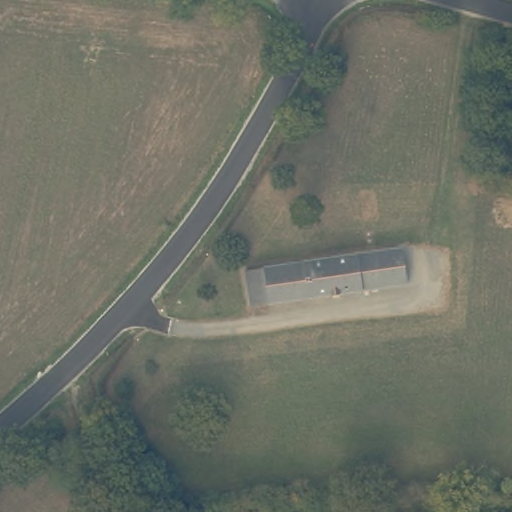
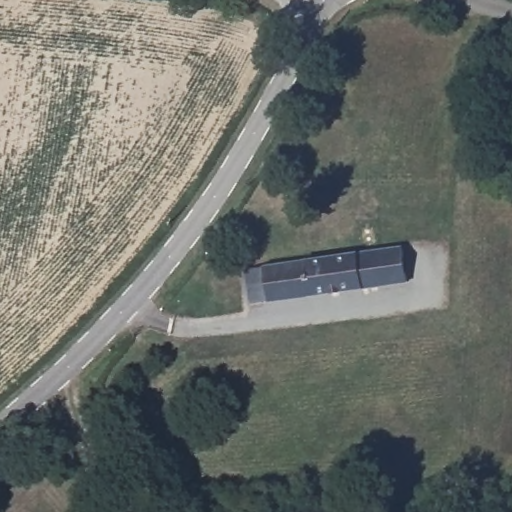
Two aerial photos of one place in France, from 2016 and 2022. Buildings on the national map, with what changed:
unchanged [(402,247),(407,282),(250,305),(245,270),(402,247)]

